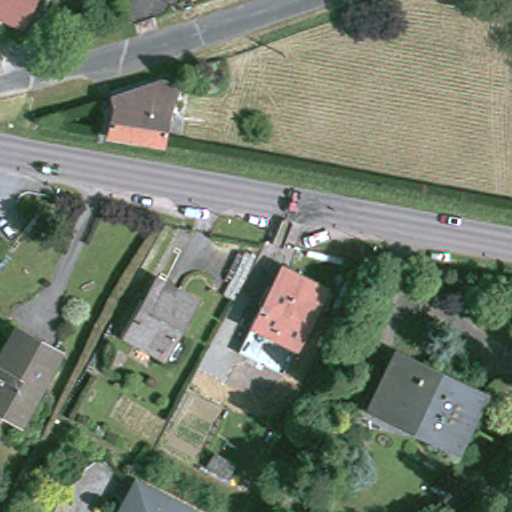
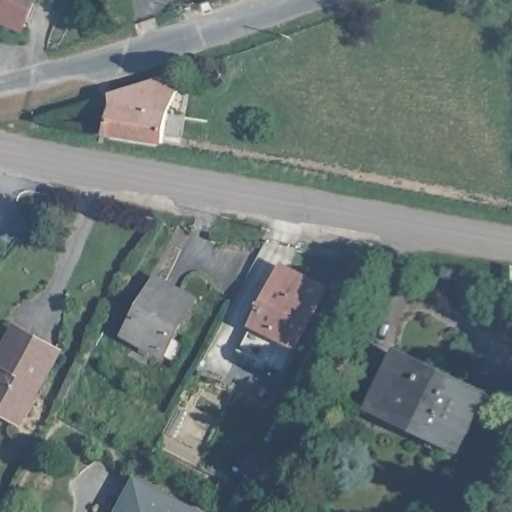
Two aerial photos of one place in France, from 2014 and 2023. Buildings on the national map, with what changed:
unchanged [(3,17),(4,14),(0,12),(0,0),(33,0),(22,25),(3,17)]
unchanged [(179,82),(166,115),(163,144),(158,144),(108,135),(115,105),(112,96),(159,81),(179,82)]
unchanged [(276,335),(276,333),(259,324),(259,326),(257,325),(267,306),(273,308),(291,270),(331,290),(301,347),(276,335)]
unchanged [(157,281),(194,301),(163,356),(126,335),(157,281)]
unchanged [(0,363),(0,361),(17,330),(58,353),(20,422),(0,411),(0,375),(5,366),(0,363)]
unchanged [(423,436),(426,428),(381,407),(394,382),(384,377),(392,361),(428,378),(432,369),(486,395),(458,452),(423,436)]
unchanged [(136,482),(193,512),(121,512),(136,482)]

